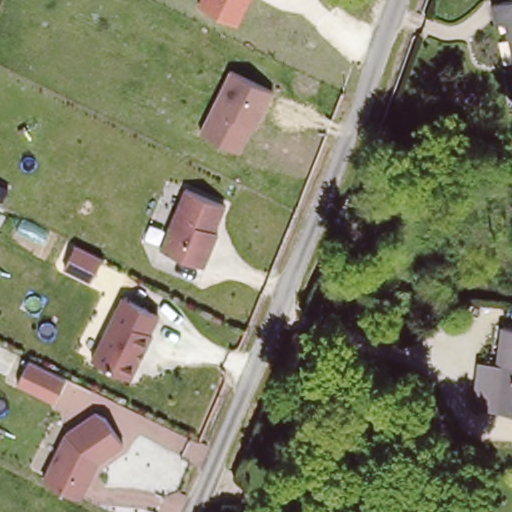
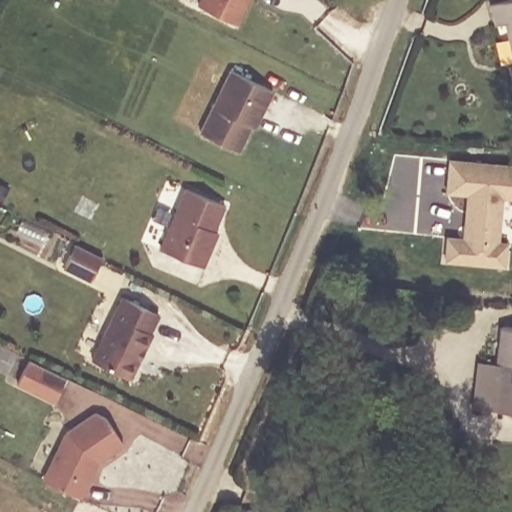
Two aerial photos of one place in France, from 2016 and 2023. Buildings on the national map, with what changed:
unchanged [(196,4),(198,0),(250,0),(238,25),(196,4)]
unchanged [(498,26),(492,8),(512,2),(512,38),(507,24),(498,26)]
unchanged [(512,69),(511,67),(512,67),(512,69)]
unchanged [(231,69),(272,89),(258,123),(251,121),(238,150),(200,130),(231,69)]
new [(446,235),(462,237),(466,195),(445,194),(448,159),(512,165),(512,200),(503,199),(500,240),(508,241),(506,267),(445,262),(446,235)]
unchanged [(182,188),(224,206),(214,230),(218,231),(202,266),(157,249),(182,188)]
unchanged [(157,313),(158,313),(151,333),(130,377),(88,361),(120,295),(157,313)]
unchanged [(512,412),(493,410),(504,325),(512,327),(512,412)]
unchanged [(65,375),(54,401),(15,383),(27,360),(65,375)]
unchanged [(106,417),(123,443),(96,462),(80,497),(40,479),(63,430),(93,411),(106,417)]

